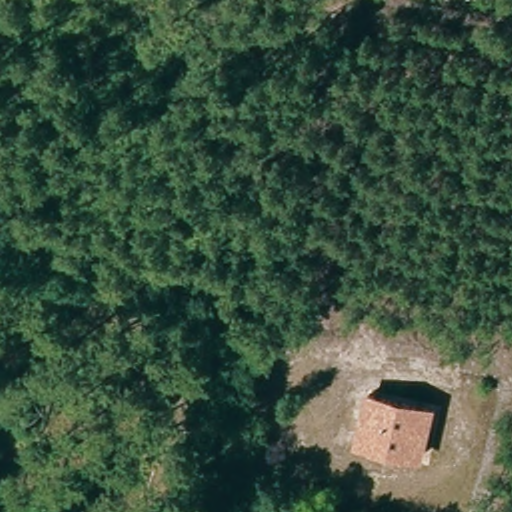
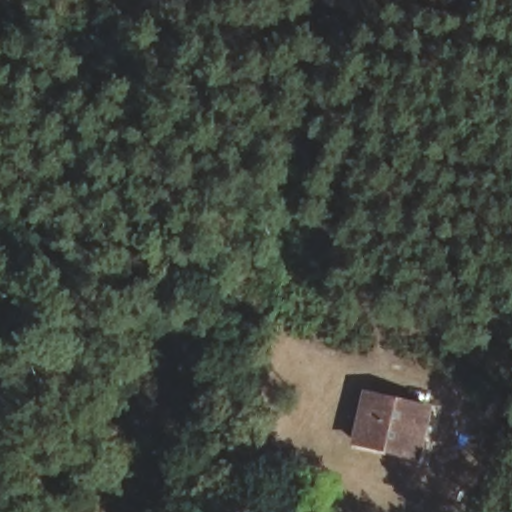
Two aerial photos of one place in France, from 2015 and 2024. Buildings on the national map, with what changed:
unchanged [(421,463),(354,445),(371,390),(440,412),(421,463)]

